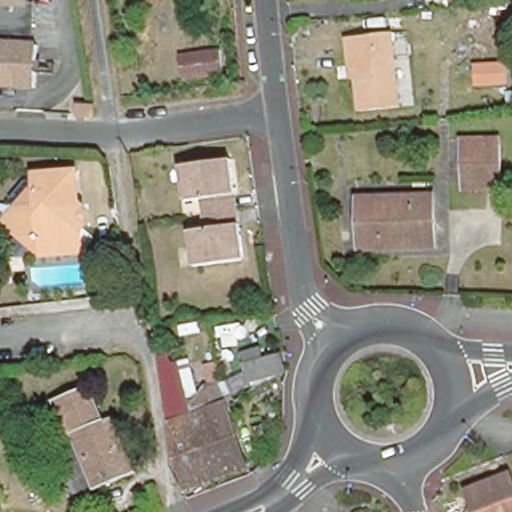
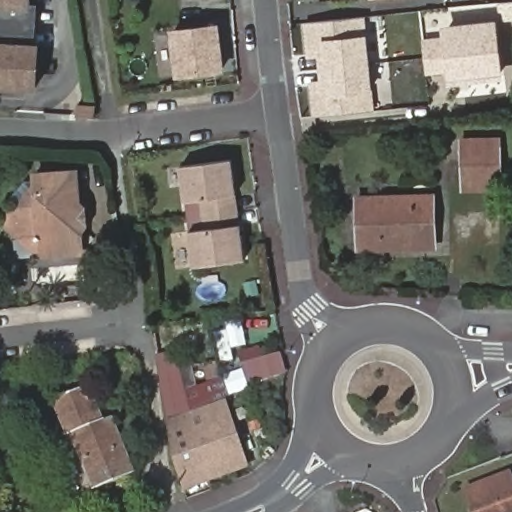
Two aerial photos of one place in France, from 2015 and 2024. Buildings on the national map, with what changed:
unchanged [(30,7),(34,6),(37,42),(34,93),(0,90),(0,0),(30,0),(30,7)]
new [(362,16),(370,109),(313,114),(310,82),(325,81),(323,52),(308,54),(305,21),(362,16)]
new [(426,75),(422,39),(442,37),(440,25),(495,19),(501,79),(447,85),(446,73),(426,75)]
unchanged [(172,31),(218,26),(225,73),(178,78),(172,31)]
demolished [(351,70),(344,71),(342,54),(347,53),(346,42),(345,39),(389,35),(395,107),(355,111),(351,70)]
unchanged [(461,139),(501,139),(502,188),(463,189),(461,139)]
unchanged [(230,155),(235,190),(230,191),(232,205),(234,220),(239,220),(243,255),(188,262),(183,226),(199,224),(197,210),(195,195),(179,197),(175,162),(230,155)]
unchanged [(0,215),(6,208),(15,199),(33,178),(32,169),(75,166),(77,202),(83,206),(83,217),(79,222),(81,248),(39,251),(31,245),(16,231),(6,222),(0,215)]
unchanged [(359,198),(432,197),(433,247),(360,249),(359,198)]
unchanged [(249,386),(235,355),(252,347),(258,361),(274,354),(281,372),(249,386)]
unchanged [(186,363),(197,409),(166,420),(155,358),(167,354),(172,361),(187,359),(186,363)]
unchanged [(123,474),(94,487),(70,433),(66,435),(51,400),(89,383),(91,384),(105,417),(109,415),(112,421),(133,469),(123,474)]
unchanged [(241,462),(186,490),(164,426),(221,404),(241,462)]
unchanged [(507,477),(512,491),(512,512),(474,512),(467,493),(507,477)]

